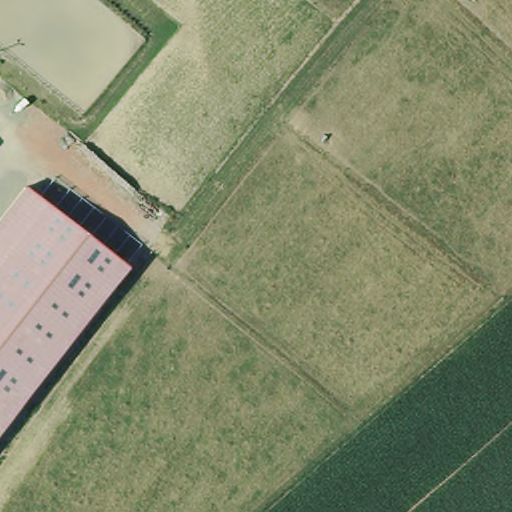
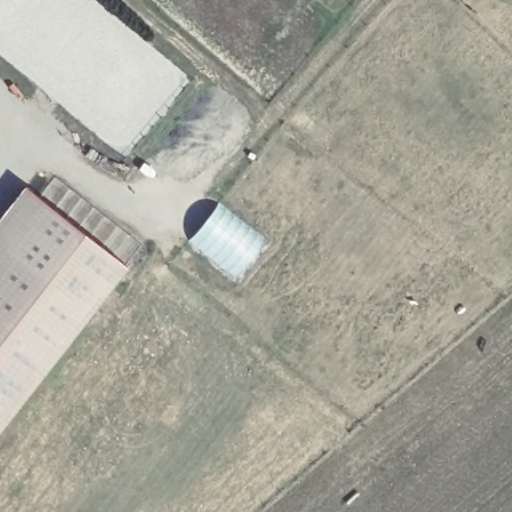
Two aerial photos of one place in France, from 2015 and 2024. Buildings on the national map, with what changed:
unchanged [(0,216),(24,186),(129,266),(0,430),(0,216)]
new [(218,201),(265,239),(235,277),(186,240),(218,201)]

